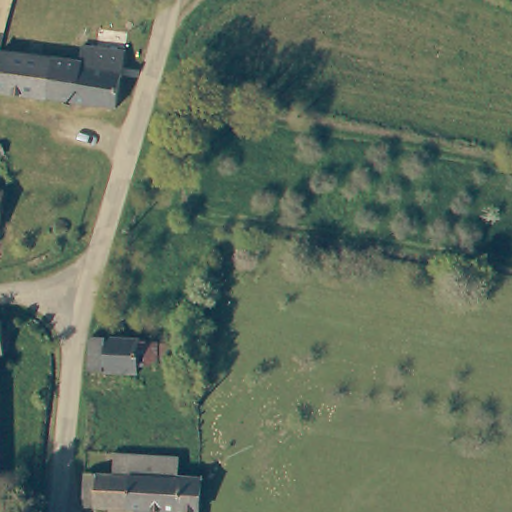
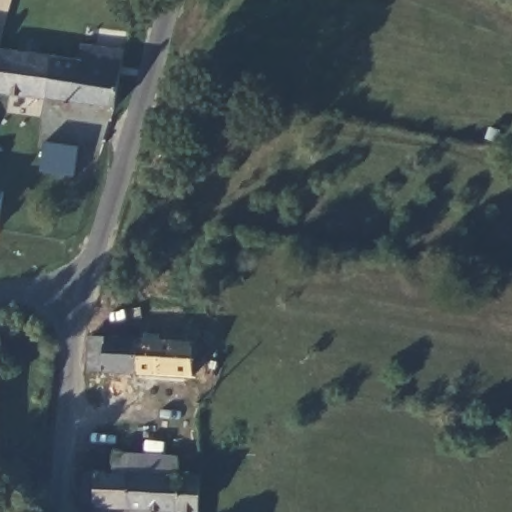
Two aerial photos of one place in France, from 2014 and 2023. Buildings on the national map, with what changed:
unchanged [(124,59),(115,112),(76,106),(85,68),(79,66),(82,50),(124,59)]
unchanged [(0,94),(0,68),(3,55),(56,64),(50,102),(0,94)]
unchanged [(56,64),(79,66),(85,68),(76,106),(50,102),(56,64)]
unchanged [(1,154),(0,155),(0,144),(1,145),(2,149),(1,152),(1,154)]
demolished [(38,169),(41,146),(75,151),(71,174),(38,169)]
unchanged [(2,191),(0,206),(0,191),(2,191)]
unchanged [(155,367),(140,367),(140,375),(90,375),(91,342),(95,342),(156,345),(155,367)]
unchanged [(181,458),(180,475),(200,477),(200,511),(199,512),(156,512),(85,508),(86,475),(116,474),(118,454),(181,458)]

